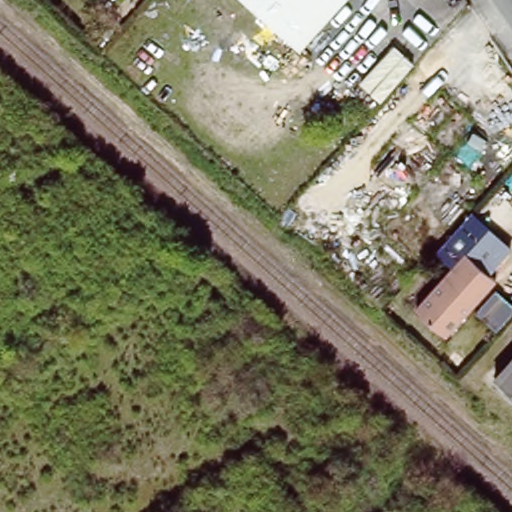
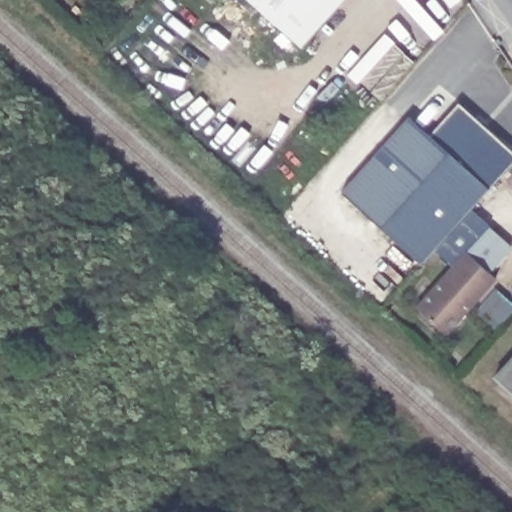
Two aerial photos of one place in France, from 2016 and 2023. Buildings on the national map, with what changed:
unchanged [(307,44),(256,0),(345,0),(307,44)]
new [(472,209),(493,228),(423,309),(417,304),(451,265),(435,249),(422,263),(341,192),(407,115),(429,133),(458,100),(512,150),(512,161),(490,188),(472,209)]
unchanged [(476,305),(452,333),(423,309),(493,228),(512,245),(512,250),(495,270),(501,276),(498,280),(476,305)]
unchanged [(512,293),(512,315),(502,327),(476,305),(498,280),(512,293)]
unchanged [(512,356),(512,382),(499,370),(512,356)]

